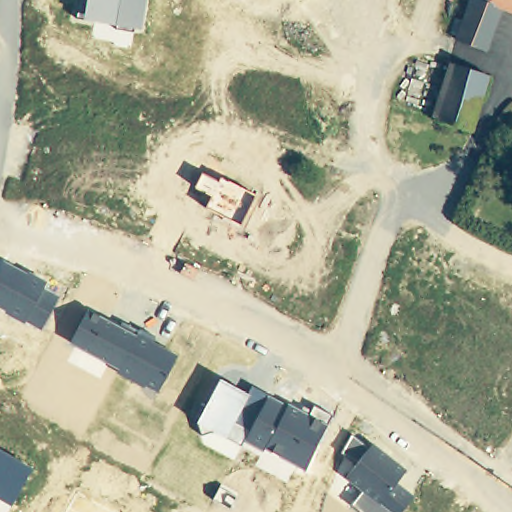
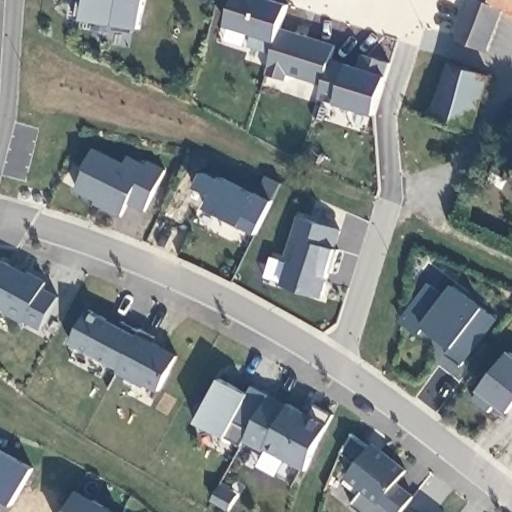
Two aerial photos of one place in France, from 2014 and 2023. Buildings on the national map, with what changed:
unchanged [(141,27),(134,27),(133,31),(115,28),(116,25),(93,20),(93,21),(76,17),(78,0),(145,0),(141,27)]
new [(289,2),(282,27),(338,44),(325,85),(294,75),(291,81),(265,74),(273,52),(251,46),(257,35),(226,25),(234,0),(279,0),(289,2)]
demolished [(387,35),(333,20),(338,0),(395,0),(387,35)]
unchanged [(502,7),(486,50),(456,37),(469,0),(483,0),(502,7)]
unchanged [(512,11),(502,7),(483,0),(512,0),(512,11)]
new [(386,76),(374,113),(336,101),(347,63),(359,67),(363,54),(392,62),(386,76)]
unchanged [(451,62),(489,75),(471,129),(433,116),(435,109),(448,69),(451,62)]
new [(144,211),(128,204),(121,216),(95,204),(97,199),(76,190),(94,147),(125,162),(129,154),(147,164),(148,160),(165,169),(144,211)]
unchanged [(218,182),(221,177),(256,195),(241,225),(205,207),(211,196),(195,186),(201,173),(218,182)]
new [(339,247),(326,297),(283,285),(292,261),(284,257),(297,214),(343,227),(339,247)]
unchanged [(2,260),(47,282),(43,288),(59,296),(42,329),(24,321),(22,324),(2,312),(4,310),(0,307),(0,264),(2,260)]
new [(460,367),(444,355),(451,346),(425,327),(419,336),(399,320),(428,282),(443,292),(451,284),(495,318),(460,367)]
unchanged [(135,333),(137,327),(156,336),(153,342),(178,355),(158,392),(144,384),(142,387),(117,373),(118,369),(70,343),(87,310),(135,333)]
new [(496,404),(490,412),(475,398),(479,388),(509,349),(512,351),(512,406),(507,412),(496,404)]
unchanged [(286,405),(288,402),(301,409),(303,406),(311,410),(313,405),(332,416),(328,425),(305,470),(265,448),(263,451),(244,440),(242,445),(225,436),(197,422),(220,379),(248,395),(251,386),(286,405)]
unchanged [(373,442),(407,470),(397,482),(414,495),(400,512),(361,512),(351,504),(361,491),(345,477),(355,465),(341,453),(352,435),(368,448),(373,442)]
unchanged [(31,467),(12,505),(0,499),(0,450),(31,467)]
unchanged [(64,512),(77,488),(118,512),(64,512)]

